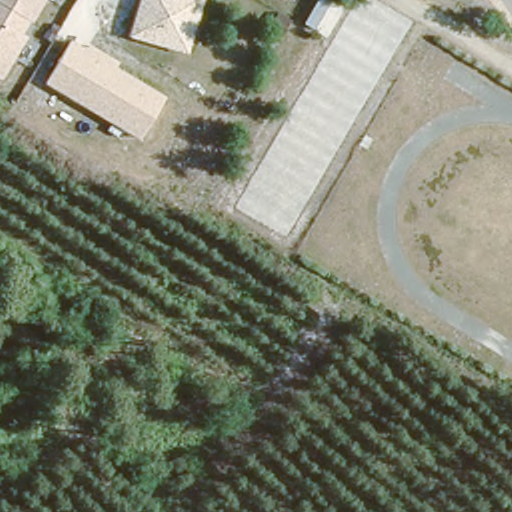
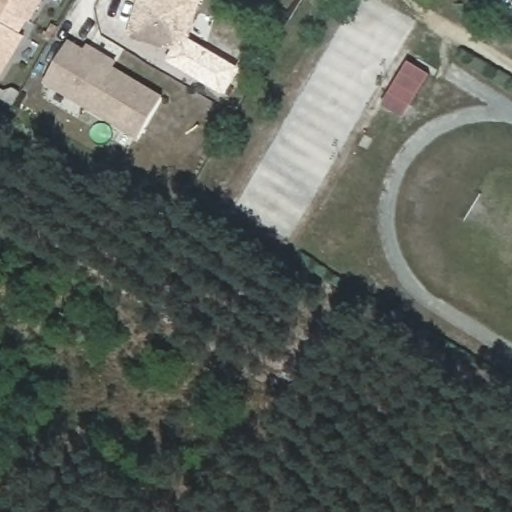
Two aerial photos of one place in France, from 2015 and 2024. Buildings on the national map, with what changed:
unchanged [(32,23),(29,21),(23,34),(28,38),(0,79),(0,0),(45,0),(32,23)]
unchanged [(188,53),(131,37),(142,0),(205,0),(188,53)]
unchanged [(138,139),(46,83),(72,39),(85,48),(86,44),(119,63),(117,67),(164,96),(138,139)]
new [(404,119),(383,105),(410,60),(431,73),(404,119)]

